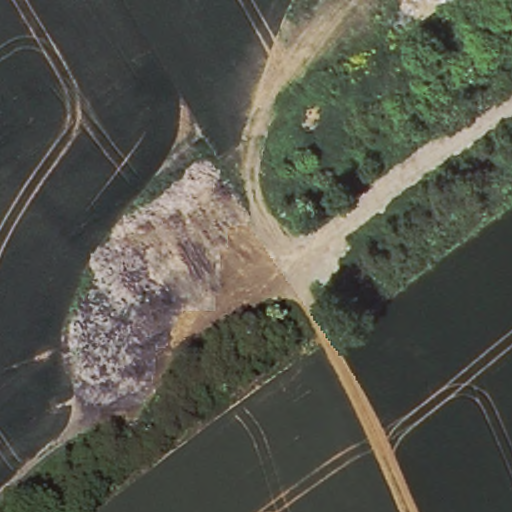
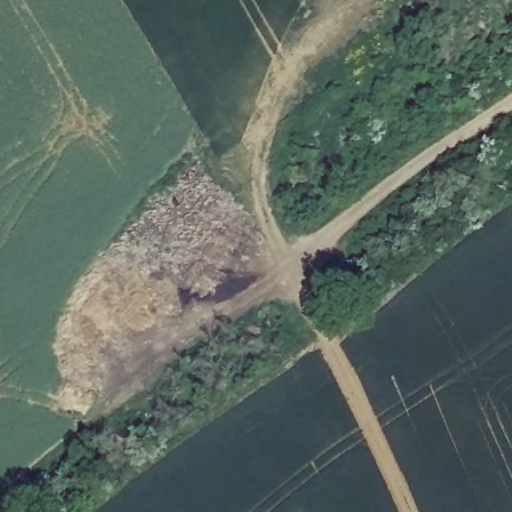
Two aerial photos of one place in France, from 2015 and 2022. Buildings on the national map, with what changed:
unchanged [(185,270),(171,286),(156,272),(170,257),(185,270)]

